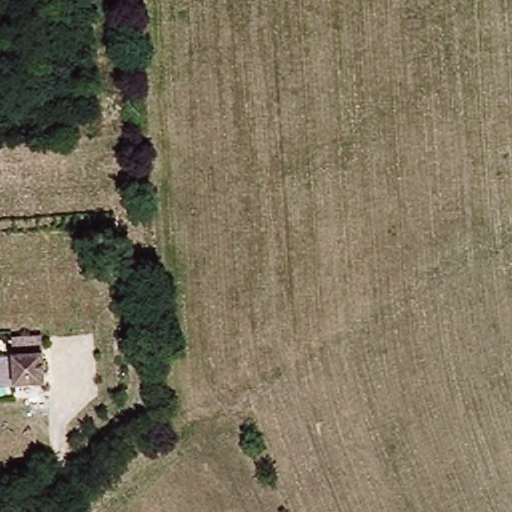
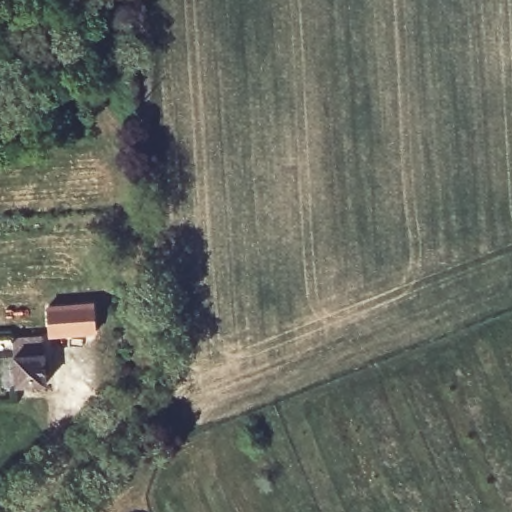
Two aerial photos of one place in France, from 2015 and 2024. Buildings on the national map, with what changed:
new [(94,301),(96,335),(47,337),(45,305),(94,301)]
unchanged [(12,338),(42,336),(44,354),(45,385),(15,386),(0,387),(0,356),(14,355),(12,338)]

